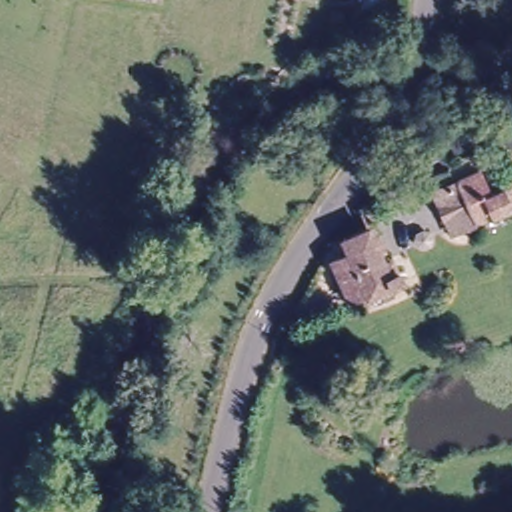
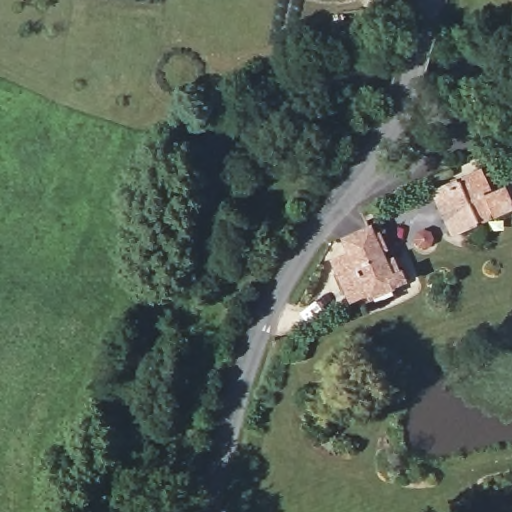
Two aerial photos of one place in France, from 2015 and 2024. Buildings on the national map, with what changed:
unchanged [(474,174),(496,164),(507,187),(512,185),(512,206),(493,214),(472,224),(455,182),(474,174)]
unchanged [(350,292),(333,256),(346,250),(339,237),(367,224),(389,271),(402,265),(407,274),(366,294),(362,285),(350,292)]

